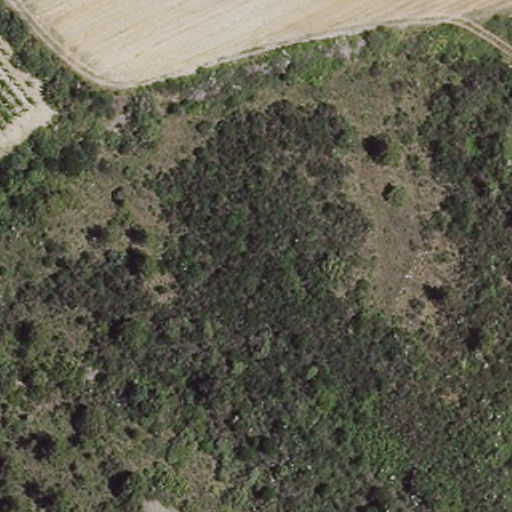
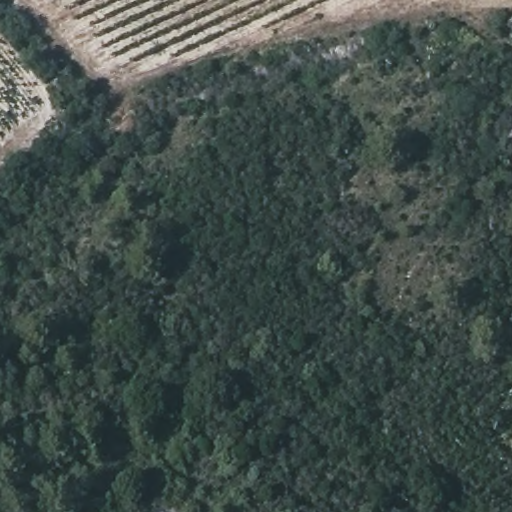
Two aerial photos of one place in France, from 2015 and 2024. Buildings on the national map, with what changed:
unchanged [(508,145),(512,140),(512,150),(508,145)]

